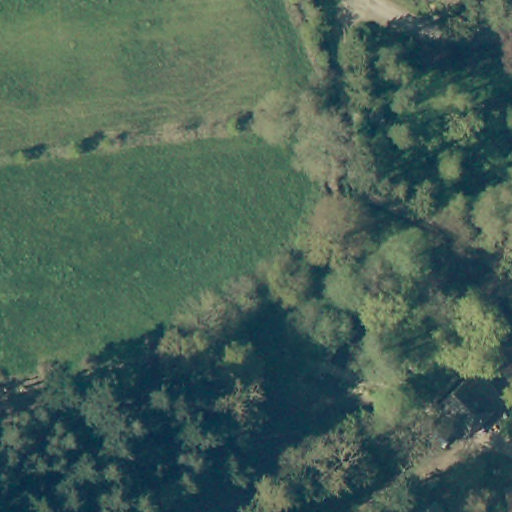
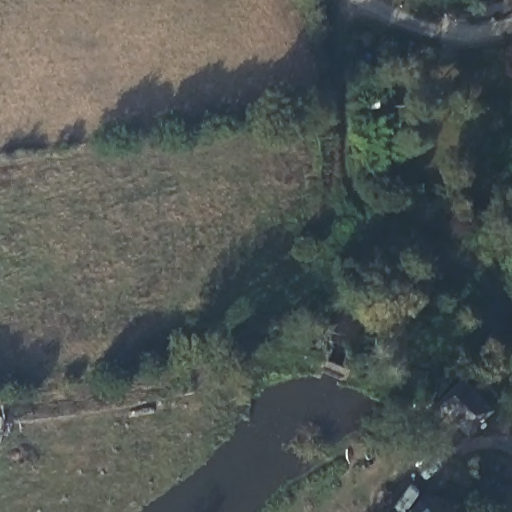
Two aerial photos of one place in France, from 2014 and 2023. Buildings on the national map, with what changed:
unchanged [(496,384),(509,399),(473,433),(455,414),(443,401),(479,367),(496,384)]
unchanged [(501,511),(501,504),(506,500),(512,499),(512,512),(502,512),(501,511)]

